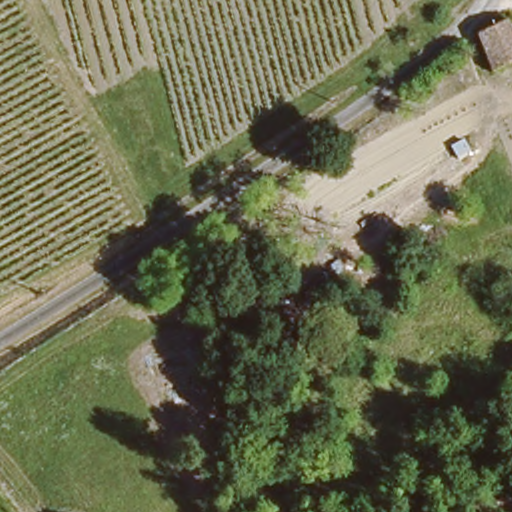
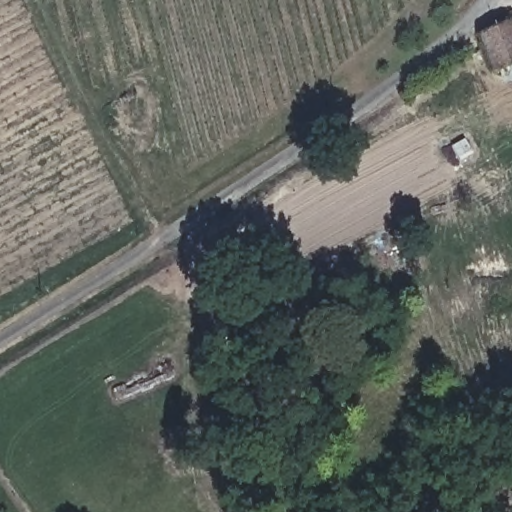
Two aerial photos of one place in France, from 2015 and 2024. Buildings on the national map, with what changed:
unchanged [(506,25),(512,41),(512,62),(491,70),(477,32),(506,25)]

